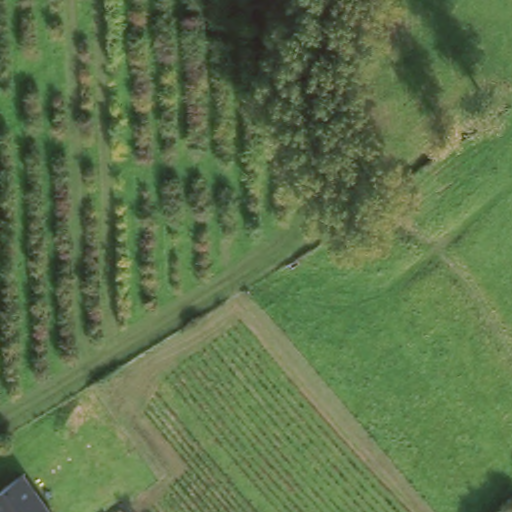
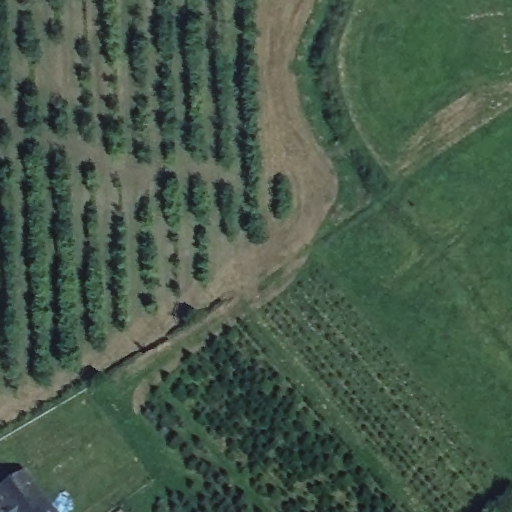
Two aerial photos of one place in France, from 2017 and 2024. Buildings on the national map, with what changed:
unchanged [(51,512),(0,512),(0,491),(25,474),(51,512)]

